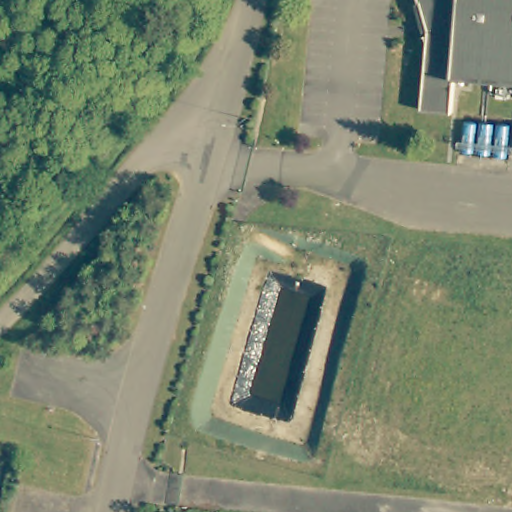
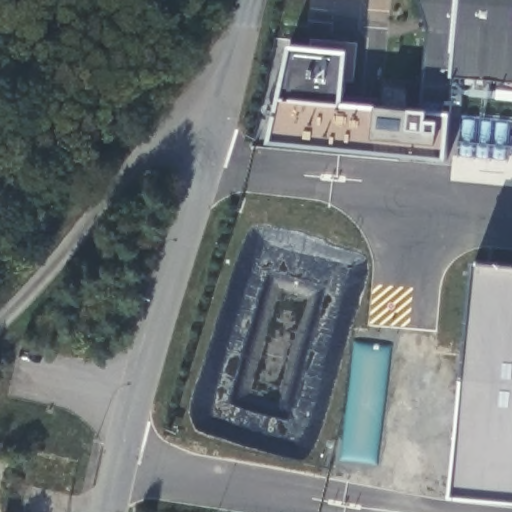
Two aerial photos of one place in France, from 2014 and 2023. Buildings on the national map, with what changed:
unchanged [(455,73),(451,111),(420,108),(427,25),(418,0),(512,0),(512,78),(455,73)]
new [(446,164),(268,149),(289,50),(348,57),(344,109),(451,118),(446,164)]
new [(454,501),(475,264),(512,268),(512,506),(454,501)]

